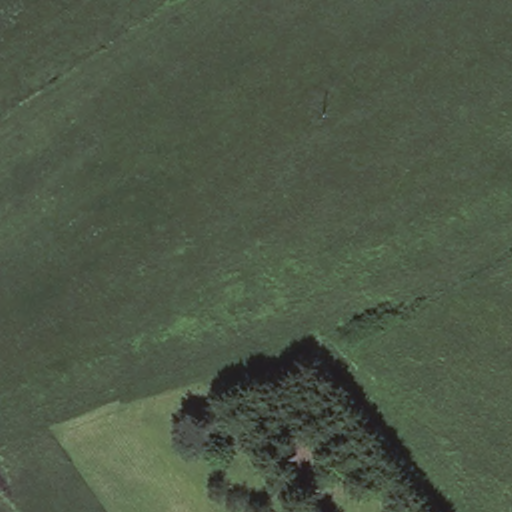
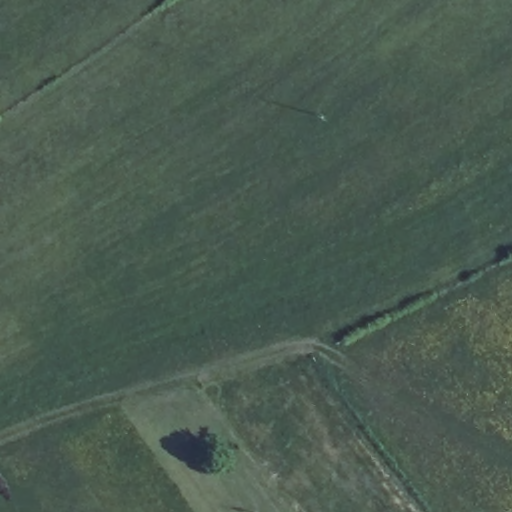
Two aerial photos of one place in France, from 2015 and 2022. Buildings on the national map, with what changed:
[]

